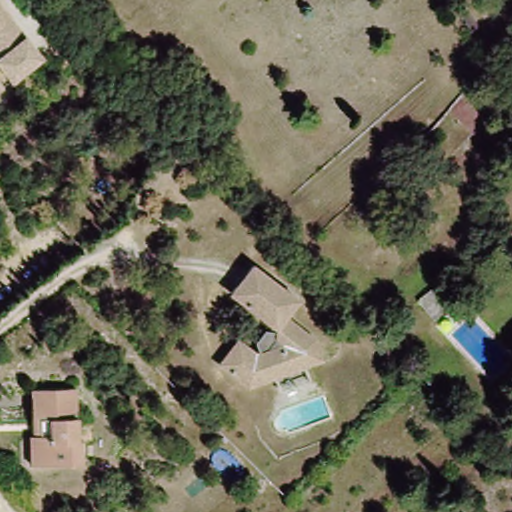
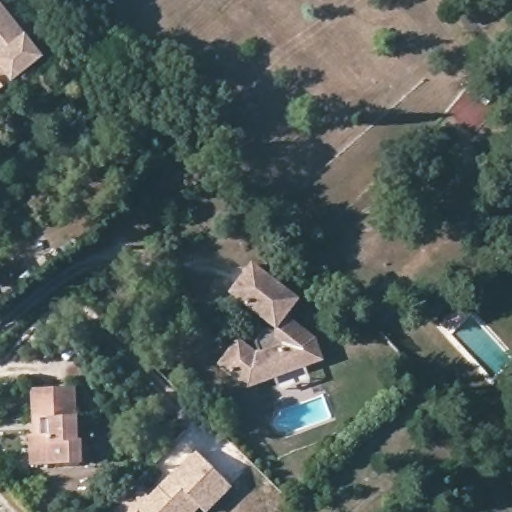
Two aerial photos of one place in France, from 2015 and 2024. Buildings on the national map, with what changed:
unchanged [(0,59),(0,0),(1,0),(29,36),(0,59)]
unchanged [(0,93),(0,89),(2,92),(0,93)]
unchanged [(285,227),(304,246),(298,252),(279,234),(285,227)]
unchanged [(266,332),(276,334),(276,327),(231,293),(253,265),(298,299),(285,316),(315,339),(322,360),(303,367),(307,379),(281,389),(276,376),(248,387),(220,364),(238,340),(255,353),(261,351),(258,342),(266,332)]
unchanged [(437,316),(422,298),(441,282),(456,300),(437,316)]
unchanged [(28,389),(70,387),(73,440),(75,440),(76,463),(27,465),(25,435),(30,435),(29,419),(28,389)]
new [(150,498),(197,452),(231,486),(204,512),(198,507),(192,512),(113,512),(111,511),(136,484),(150,498)]

